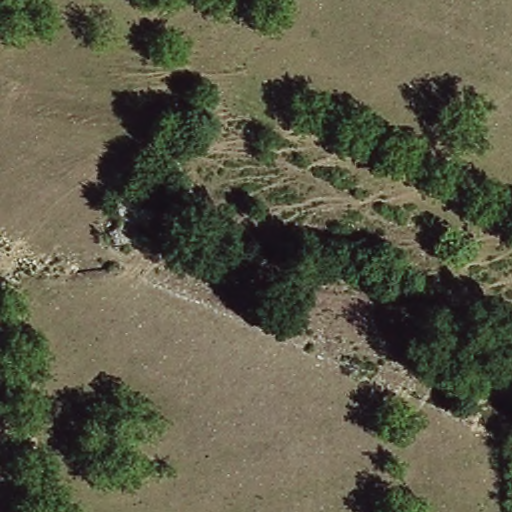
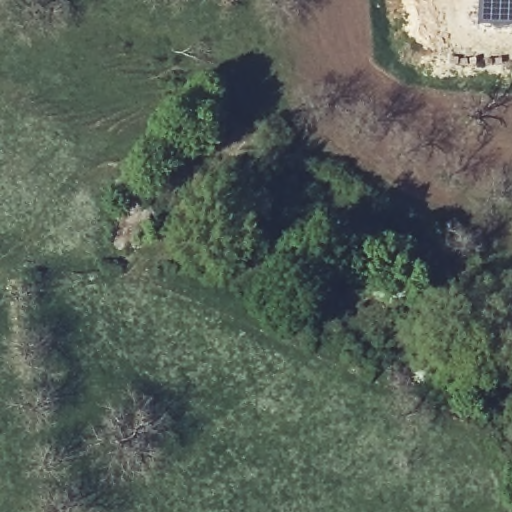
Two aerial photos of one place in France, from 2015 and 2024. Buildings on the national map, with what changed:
new [(512,0),(512,30),(472,30),(473,0),(512,0)]

